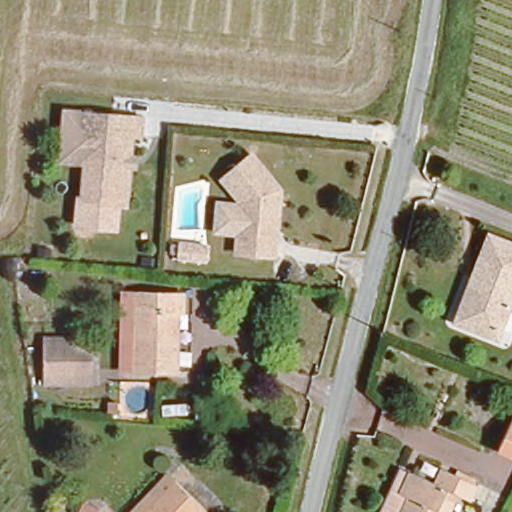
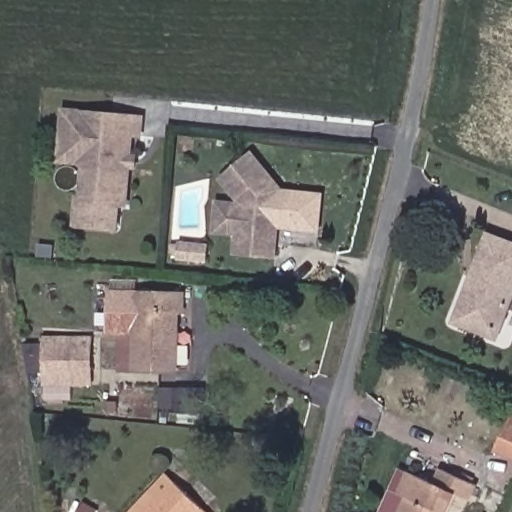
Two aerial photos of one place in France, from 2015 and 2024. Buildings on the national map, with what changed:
unchanged [(135,121),(131,168),(120,168),(117,204),(86,202),(88,164),(80,163),(81,117),(135,121)]
unchanged [(235,206),(217,182),(246,157),(277,193),(272,254),(232,251),(235,206)]
new [(285,187),(323,193),(320,234),(274,228),(277,193),(285,187)]
unchanged [(458,310),(470,280),(462,278),(482,230),(512,243),(512,277),(493,326),(491,335),(453,320),(458,310)]
unchanged [(117,362),(123,288),(137,289),(134,362),(117,362)]
unchanged [(137,289),(177,290),(172,365),(134,362),(137,289)]
unchanged [(46,339),(90,341),(90,375),(44,372),(46,339)]
unchanged [(512,408),(512,453),(496,447),(512,408)]
unchanged [(434,482),(442,467),(475,482),(467,497),(456,493),(447,512),(381,512),(403,467),(434,482)]
unchanged [(200,500),(190,512),(142,512),(174,477),(200,500)]

